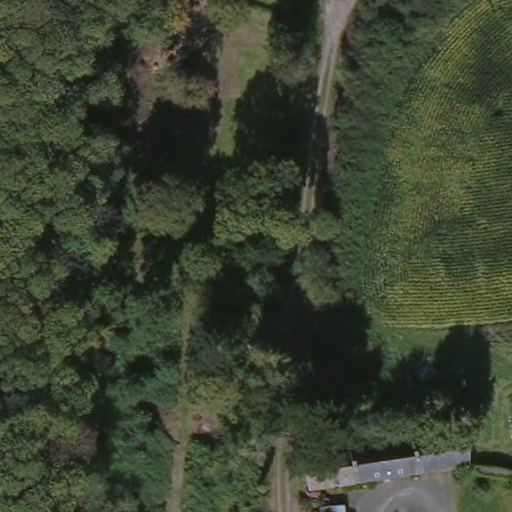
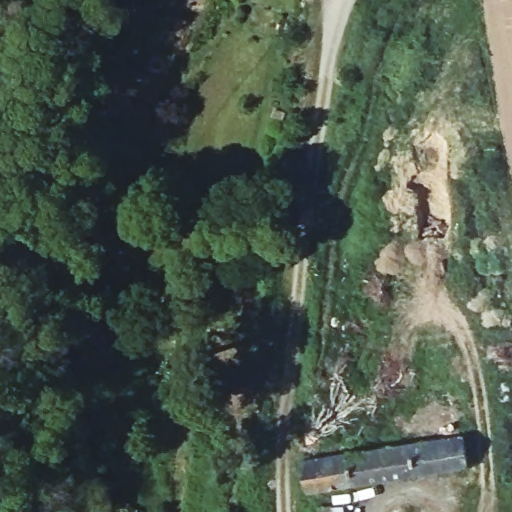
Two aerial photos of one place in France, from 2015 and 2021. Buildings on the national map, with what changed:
unchanged [(461,432),(461,464),(305,481),(301,468),(303,446),(461,432)]
unchanged [(316,503),(340,502),(340,512),(316,512),(316,503)]

